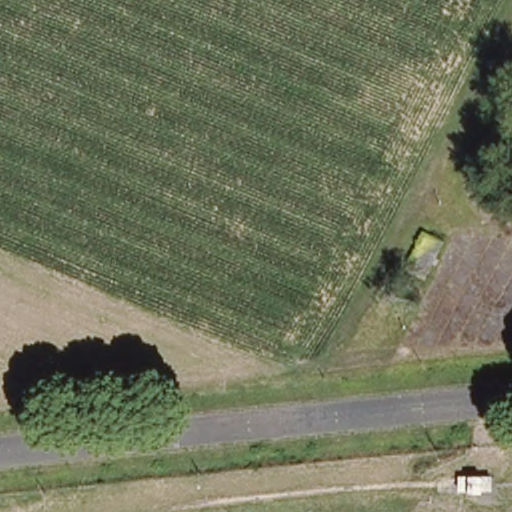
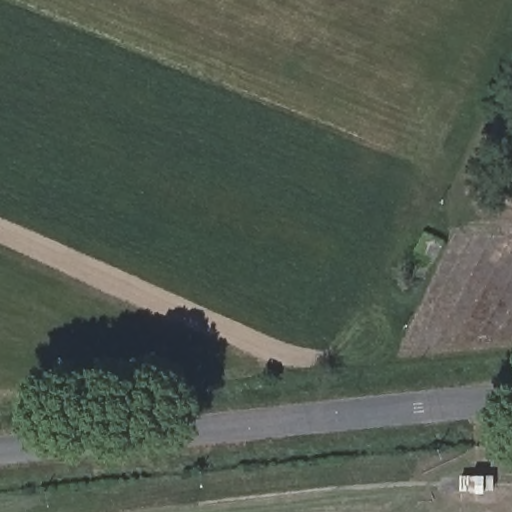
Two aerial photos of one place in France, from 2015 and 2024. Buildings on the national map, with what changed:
unchanged [(428,237),(447,246),(430,281),(411,272),(428,237)]

